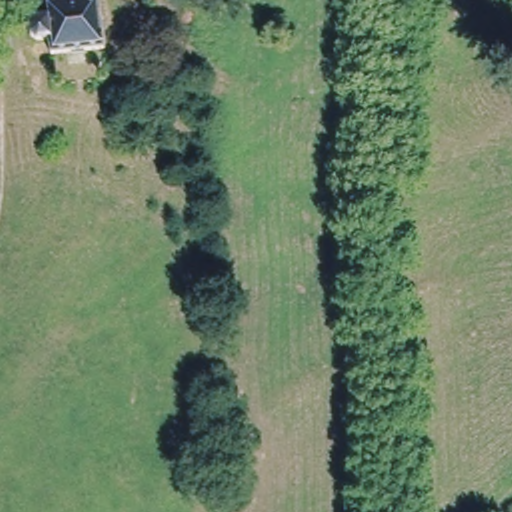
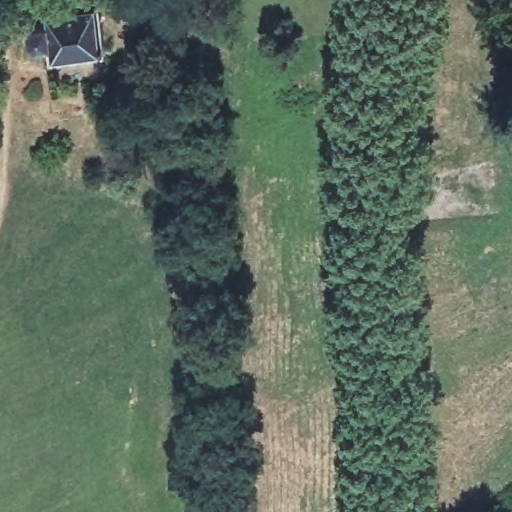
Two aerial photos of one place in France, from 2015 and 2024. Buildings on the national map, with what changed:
unchanged [(53,34),(41,33),(41,19),(52,17),(52,2),(83,0),(108,0),(108,43),(54,45),(53,34)]

